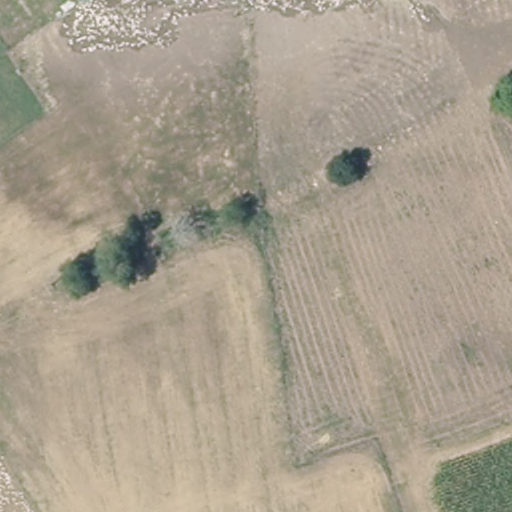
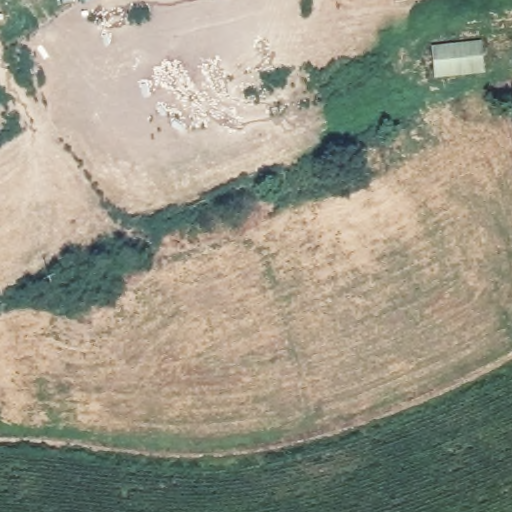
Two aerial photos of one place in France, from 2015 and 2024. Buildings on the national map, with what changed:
unchanged [(81,0),(87,0),(81,1),(81,0)]
new [(482,41),(486,74),(436,80),(432,46),(482,41)]

